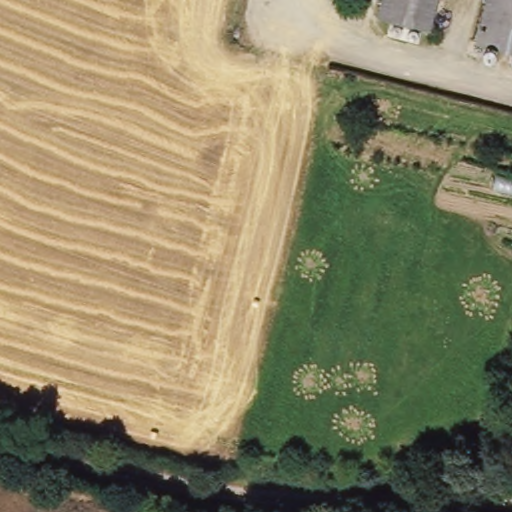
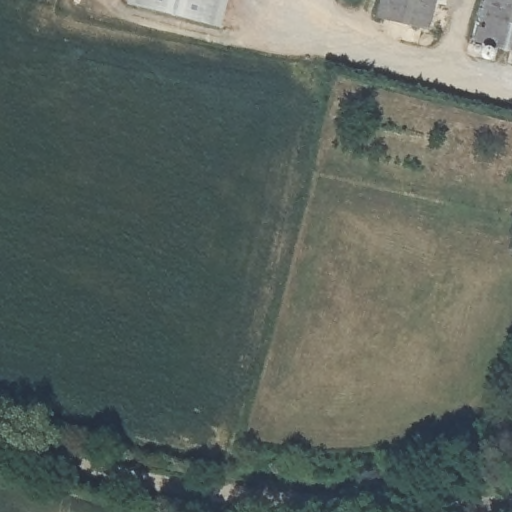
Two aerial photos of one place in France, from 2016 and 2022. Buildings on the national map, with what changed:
new [(128,0),(213,0),(205,31),(125,11),(128,0)]
new [(213,0),(226,0),(218,34),(205,31),(213,0)]
unchanged [(383,21),(376,19),(381,0),(388,0),(383,21)]
unchanged [(427,32),(383,21),(388,0),(435,0),(427,32)]
unchanged [(489,0),(512,0),(512,52),(479,43),(489,0)]

